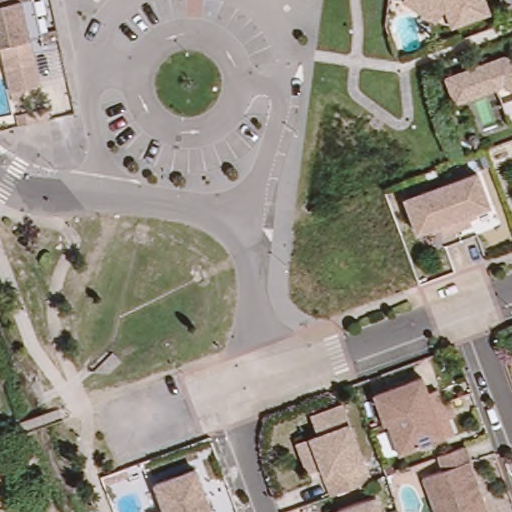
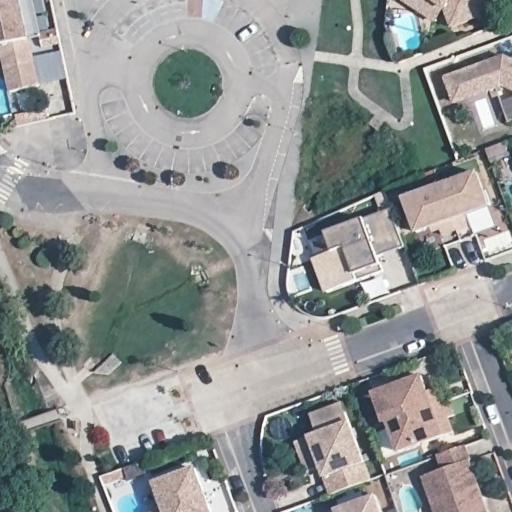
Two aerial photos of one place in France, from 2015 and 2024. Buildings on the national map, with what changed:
unchanged [(0,0),(2,0),(3,5),(23,1),(28,0),(35,0),(43,36),(32,39),(42,84),(12,90),(2,45),(0,45),(0,0)]
unchanged [(402,4),(404,0),(481,0),(487,18),(450,32),(443,13),(434,27),(402,4)]
unchanged [(493,85),(470,93),(471,95),(453,102),(445,78),(502,57),(512,62),(512,120),(507,122),(493,85)]
unchanged [(487,202),(465,210),(469,220),(440,231),(436,221),(415,229),(402,196),(474,169),(487,202)]
new [(332,253),(324,234),(390,209),(405,248),(380,257),(385,271),(327,293),(314,260),(332,253)]
unchanged [(443,436),(398,453),(387,423),(383,424),(372,394),(420,376),(426,392),(435,389),(440,402),(447,401),(453,415),(447,418),(452,433),(443,436)]
unchanged [(300,434),(312,429),(320,426),(313,407),(345,395),(373,471),(334,486),(324,460),(311,464),(300,434)]
unchanged [(446,475),(441,461),(469,451),(475,466),(473,466),(490,512),(437,512),(426,483),(446,475)]
unchanged [(161,512),(150,487),(192,470),(208,512),(161,512)]
unchanged [(338,506),(378,491),(386,512),(334,512),(332,508),(338,506)]

